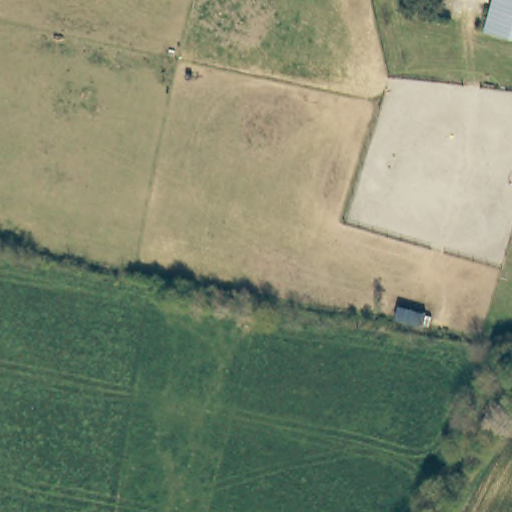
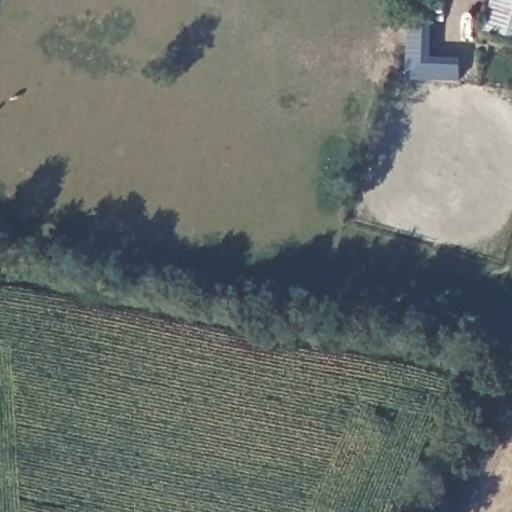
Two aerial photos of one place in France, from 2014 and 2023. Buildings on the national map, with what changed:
unchanged [(497,0),(512,0),(512,36),(487,27),(497,0)]
new [(407,77),(412,9),(433,11),(432,56),(461,58),(460,81),(407,77)]

